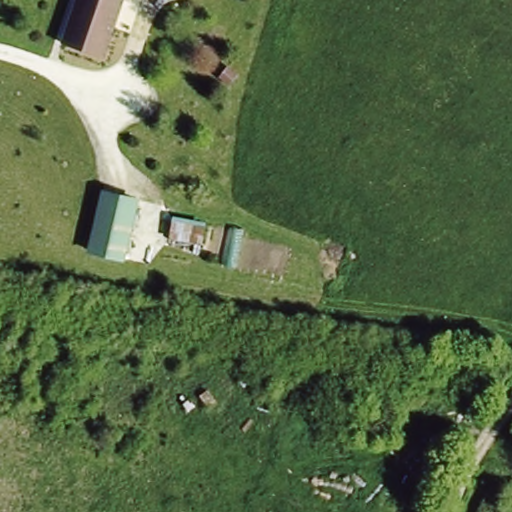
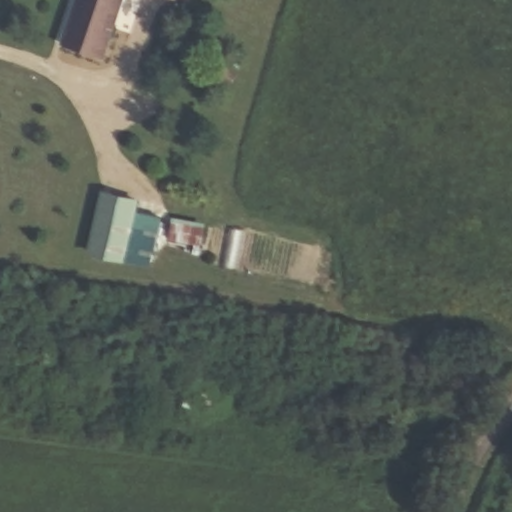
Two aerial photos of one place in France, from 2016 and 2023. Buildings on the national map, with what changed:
unchanged [(104,54),(62,42),(75,0),(121,0),(104,54)]
unchanged [(136,198),(123,259),(89,249),(101,189),(136,198)]
unchanged [(204,223),(201,239),(171,236),(174,216),(204,223)]

